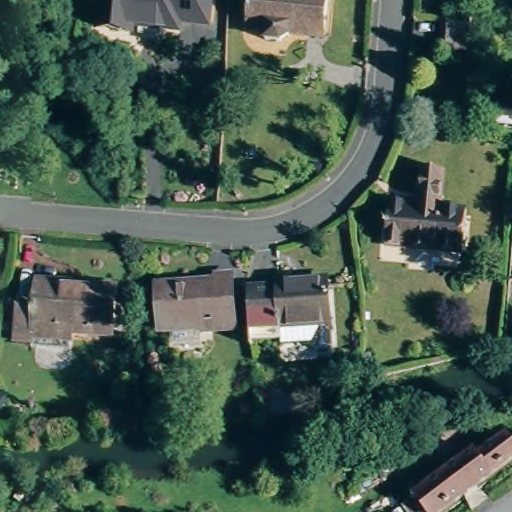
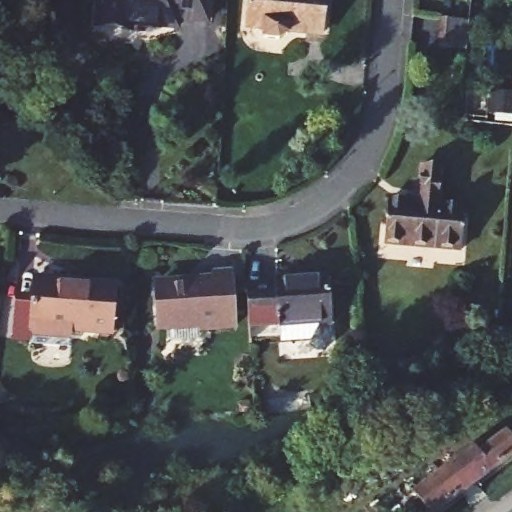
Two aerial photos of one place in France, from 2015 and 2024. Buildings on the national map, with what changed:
unchanged [(180,20),(179,27),(133,22),(132,27),(100,24),(102,0),(210,0),(208,22),(180,20)]
unchanged [(297,25),(297,28),(291,36),(275,37),(274,28),(257,30),(253,0),(326,0),(328,22),(297,25)]
unchanged [(475,45),(475,53),(444,51),(447,20),(477,21),(475,45)]
unchanged [(422,250),(423,238),(392,236),(396,194),(427,197),(430,167),(448,168),(446,199),(442,240),(441,252),(422,250)]
unchanged [(336,318),(288,320),(289,331),(257,332),(255,280),(285,278),(285,273),(307,272),(307,277),(335,276),(336,318)]
unchanged [(235,326),(200,327),(199,322),(162,324),(160,283),(198,282),(198,279),(216,279),(216,274),(232,273),(235,326)]
unchanged [(130,284),(128,331),(48,327),(47,338),(31,337),(33,299),(50,300),(50,280),(130,284)]
unchanged [(415,497),(427,488),(487,444),(490,449),(512,433),(512,463),(446,512),(444,512),(443,511),(442,512),(426,512),(415,497)]
unchanged [(368,450),(373,462),(355,470),(349,458),(368,450)]

